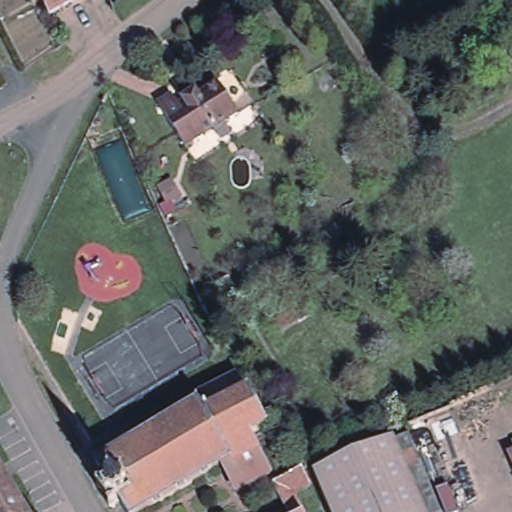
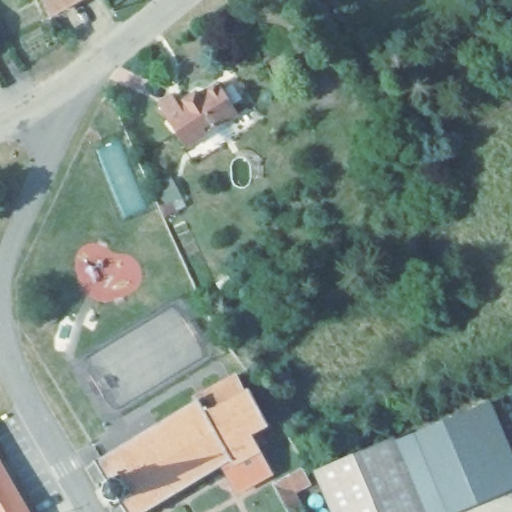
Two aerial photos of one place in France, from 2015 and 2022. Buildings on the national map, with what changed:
unchanged [(39,0),(76,0),(47,16),(39,0)]
unchanged [(168,94),(176,108),(182,105),(180,101),(193,94),(195,98),(216,87),(233,119),(178,148),(155,101),(168,94)]
unchanged [(174,180),(183,196),(170,203),(160,187),(174,180)]
unchanged [(230,278),(237,290),(225,297),(218,286),(230,278)]
demolished [(217,364),(194,379),(183,364),(205,349),(217,364)]
unchanged [(190,400),(233,377),(242,395),(248,392),(265,426),(247,436),(267,475),(233,493),(219,466),(144,512),(123,512),(117,503),(112,505),(113,507),(110,509),(108,507),(107,508),(94,488),(96,487),(95,484),(98,482),(100,485),(105,482),(93,463),(97,460),(192,404),(190,400)]
new [(453,512),(447,512),(415,433),(491,402),(512,451),(512,454),(505,457),(512,473),(512,489),(453,512)]
unchanged [(407,432),(439,512),(420,512),(390,440),(407,432)]
unchanged [(323,493),(315,473),(390,440),(420,512),(332,512),(323,493)]
unchanged [(512,454),(512,473),(505,457),(512,454)]
unchanged [(0,464),(28,512),(0,512),(0,464)]
unchanged [(270,489),(273,482),(298,468),(300,471),(308,485),(291,495),(301,512),(282,512),(270,489)]

